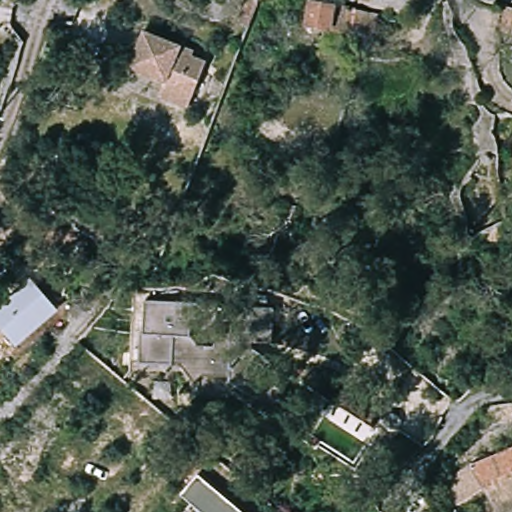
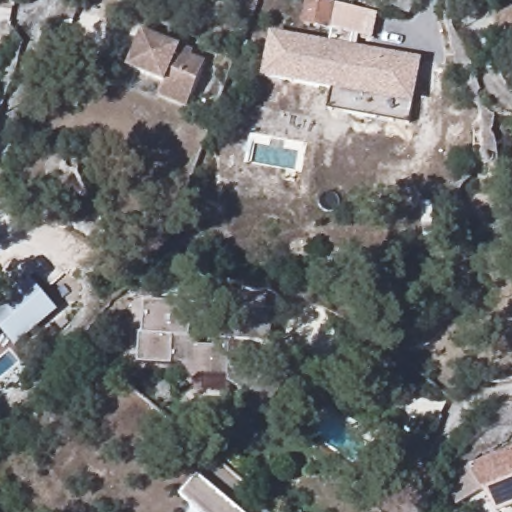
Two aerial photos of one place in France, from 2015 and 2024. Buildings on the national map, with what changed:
unchanged [(373,12),(368,39),(326,30),(326,32),(298,26),(303,0),(373,12)]
unchanged [(499,29),(508,4),(512,5),(512,34),(499,29)]
unchanged [(138,30),(176,45),(174,50),(203,61),(181,109),(153,95),(158,83),(122,68),(138,30)]
new [(271,32),(330,43),(333,31),(359,36),(357,48),(423,60),(414,106),(261,78),(271,32)]
demolished [(316,100),(351,106),(342,142),(316,137),(308,136),(310,126),(316,100)]
unchanged [(16,345),(0,326),(0,304),(26,282),(51,311),(16,345)]
unchanged [(200,298),(200,322),(196,324),(193,327),(193,333),(194,336),(196,340),(201,343),(230,341),(230,289),(253,289),(268,292),(268,305),(279,305),(278,341),(242,343),(271,358),(272,365),(252,395),(227,380),(229,373),(200,375),(198,380),(191,380),(179,365),(138,362),(140,331),(143,331),(143,298),(200,298)]
unchanged [(495,506),(471,465),(512,449),(512,500),(495,506)]
unchanged [(197,512),(182,499),(203,477),(243,512),(197,512)]

